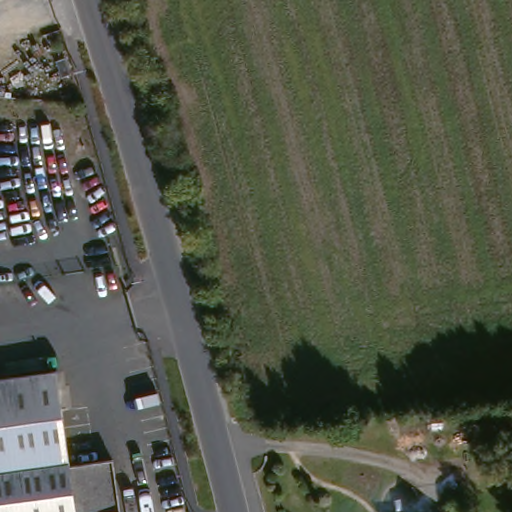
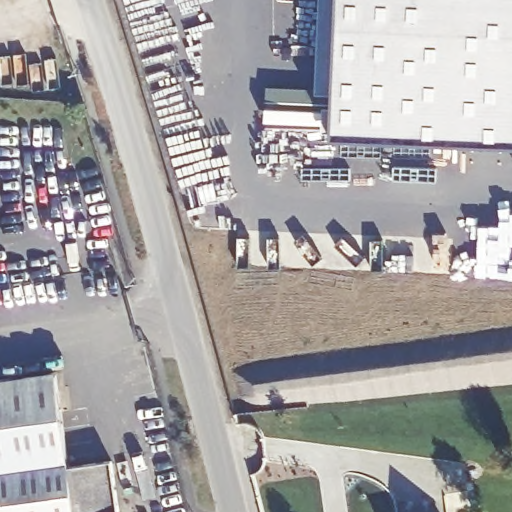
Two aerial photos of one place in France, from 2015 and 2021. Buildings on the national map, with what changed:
new [(337,124),(323,130),(323,105),(339,98),(340,85),(318,91),(321,0),(512,0),(512,140),(336,135),(337,124)]
unchanged [(59,376),(64,418),(70,471),(113,467),(118,512),(0,512),(0,383),(59,376)]

